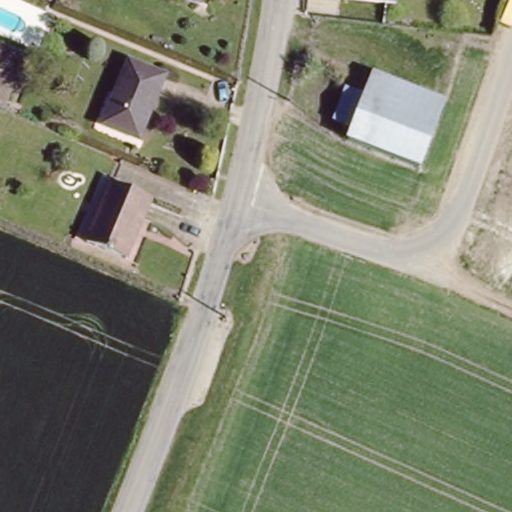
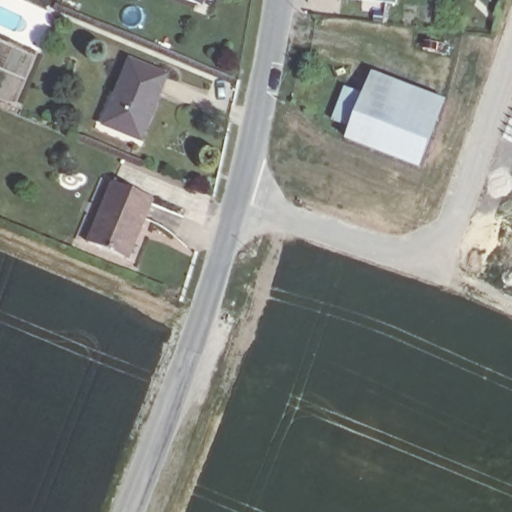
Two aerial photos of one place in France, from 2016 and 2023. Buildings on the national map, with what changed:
unchanged [(143,138),(105,124),(131,59),(168,74),(143,138)]
unchanged [(358,136),(362,123),(339,115),(351,83),(374,90),(381,70),(452,97),(427,162),(358,136)]
unchanged [(122,253),(83,238),(108,175),(149,193),(122,253)]

